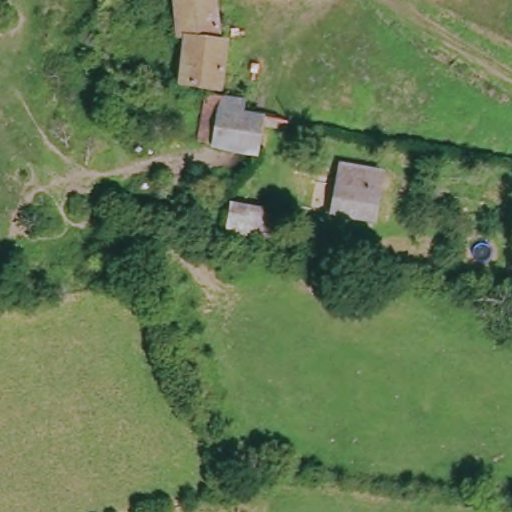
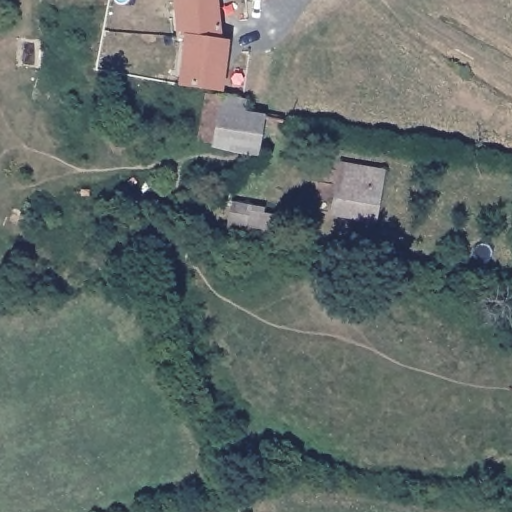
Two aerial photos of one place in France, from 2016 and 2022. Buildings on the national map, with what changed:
unchanged [(184,36),(175,34),(172,0),(211,0),(214,41),(184,36)]
unchanged [(178,84),(184,36),(214,41),(220,42),(215,90),(178,84)]
unchanged [(206,146),(211,111),(258,117),(252,153),(206,146)]
unchanged [(334,177),(373,182),(366,210),(329,206),(334,177)]
unchanged [(269,236),(222,221),(226,196),(276,210),(269,236)]

